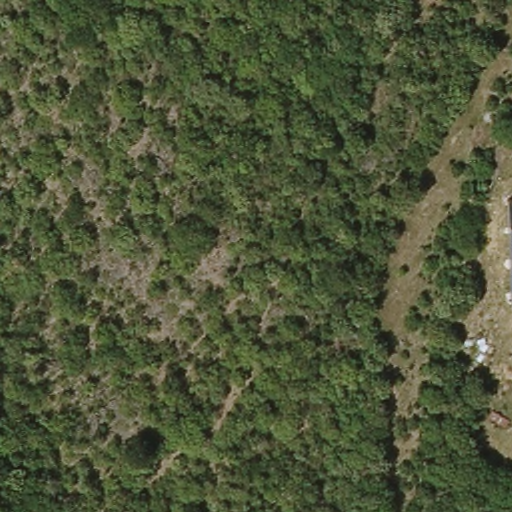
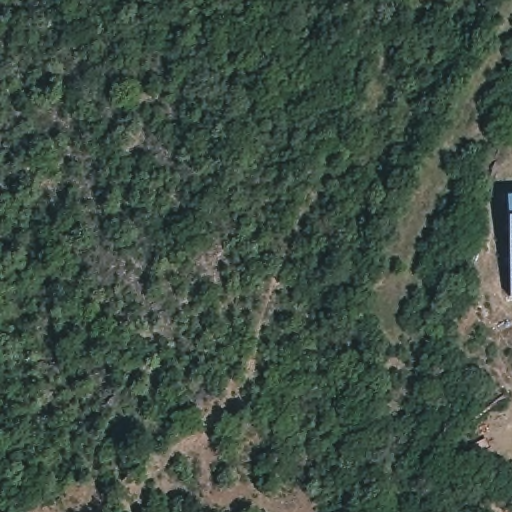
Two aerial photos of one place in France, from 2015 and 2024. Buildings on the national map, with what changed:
unchanged [(505,198),(512,197),(512,297),(509,297),(505,198)]

